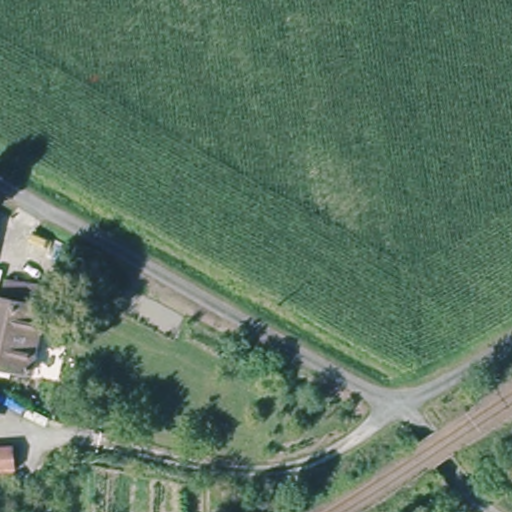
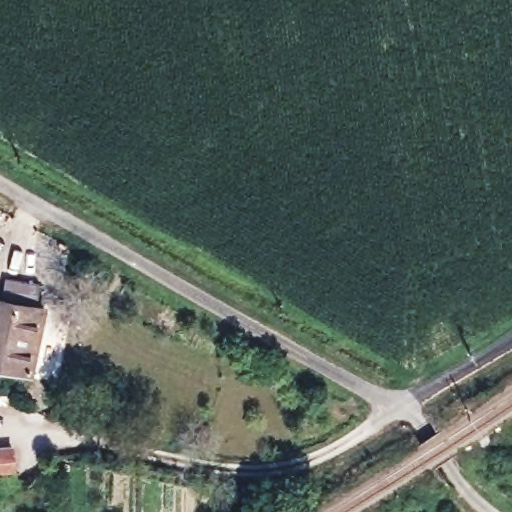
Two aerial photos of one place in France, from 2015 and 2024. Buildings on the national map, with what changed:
unchanged [(1,226),(0,229),(0,226),(1,226)]
unchanged [(37,350),(31,378),(0,371),(0,300),(46,313),(37,350)]
unchanged [(0,476),(0,446),(18,445),(22,473),(0,476)]

